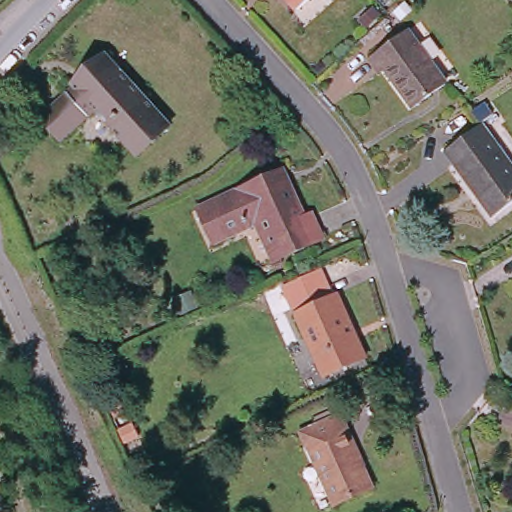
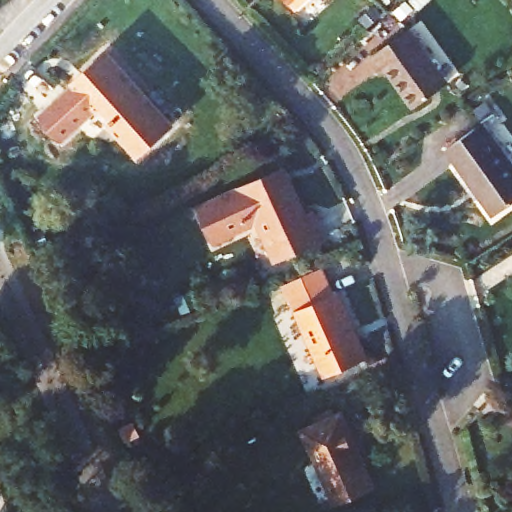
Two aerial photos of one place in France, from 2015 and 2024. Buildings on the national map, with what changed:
unchanged [(294,5),(289,0),(299,0),(294,5)]
unchanged [(443,78),(409,102),(380,63),(375,66),(366,52),(403,25),(443,78)]
unchanged [(136,153),(95,106),(61,135),(40,112),(74,83),(71,79),(101,53),(106,49),(171,122),(166,127),(136,153)]
unchanged [(512,160),(512,191),(492,206),(448,141),(482,116),(512,160)]
unchanged [(285,165),(291,177),(306,212),(313,209),(323,234),(291,249),(286,239),(269,246),(257,217),(200,240),(186,206),(270,171),(285,165)]
unchanged [(329,277),(334,290),(341,287),(368,355),(328,372),(294,292),(329,277)]
unchanged [(309,437),(303,422),(335,408),(349,438),(344,441),(353,460),(356,458),(365,480),(328,496),(303,441),(309,437)]

